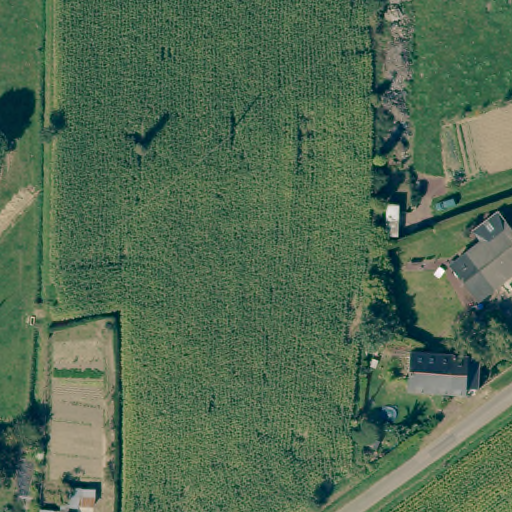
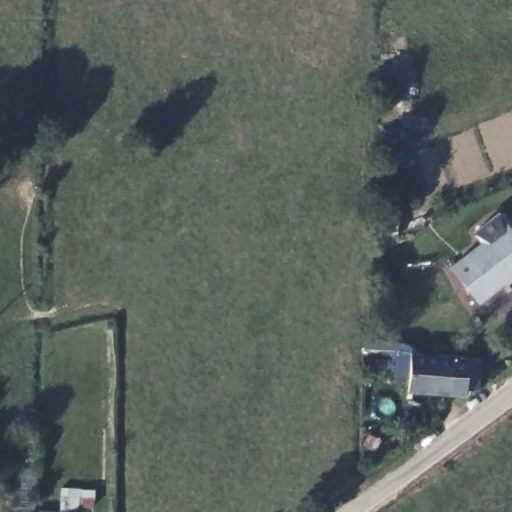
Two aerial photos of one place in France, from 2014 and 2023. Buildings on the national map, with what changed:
unchanged [(454,274),(441,258),(493,220),(506,236),(454,274)]
unchanged [(506,236),(510,232),(512,236),(512,286),(481,307),(453,275),(454,274),(506,236)]
unchanged [(478,380),(465,389),(407,386),(407,351),(421,350),(465,352),(480,352),(478,380)]

